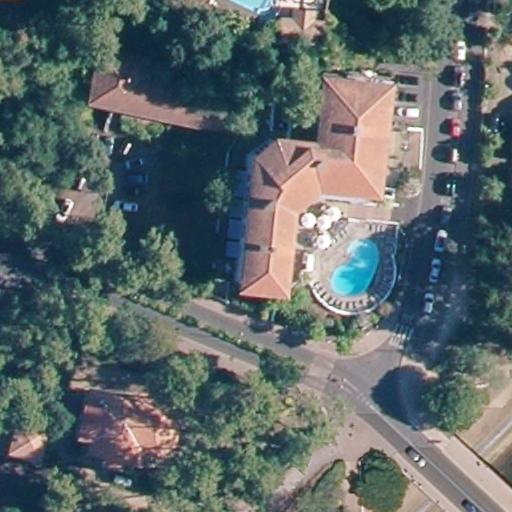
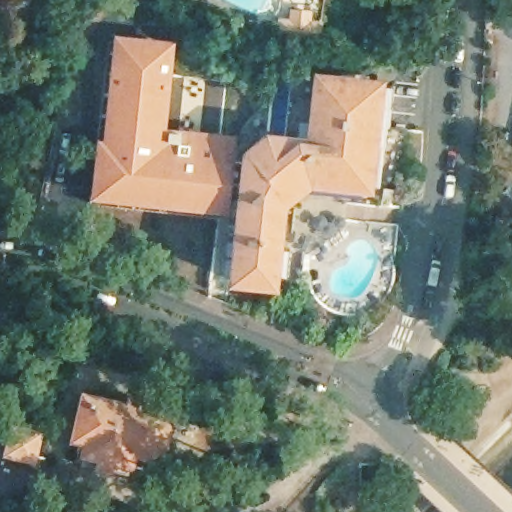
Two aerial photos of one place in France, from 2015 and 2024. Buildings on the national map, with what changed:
unchanged [(322,60),(282,56),(285,36),(296,38),(297,28),(314,29),(313,39),(325,40),(322,60)]
new [(91,201),(96,139),(102,140),(113,36),(176,41),(167,126),(237,135),(235,152),(231,215),(91,201)]
demolished [(165,71),(160,91),(220,104),(214,133),(86,106),(97,56),(165,71)]
unchanged [(226,292),(235,152),(261,140),(290,139),(305,101),(292,100),(295,77),(383,88),(372,192),(311,189),(285,214),(277,300),(226,292)]
unchanged [(392,202),(382,201),(382,191),(387,191),(392,192),(392,202)]
unchanged [(80,393),(99,398),(97,407),(143,418),(144,417),(150,418),(164,427),(160,444),(144,455),(140,454),(137,467),(109,460),(109,461),(77,453),(81,440),(68,437),(80,393)]
unchanged [(1,463),(7,434),(37,440),(30,469),(1,463)]

